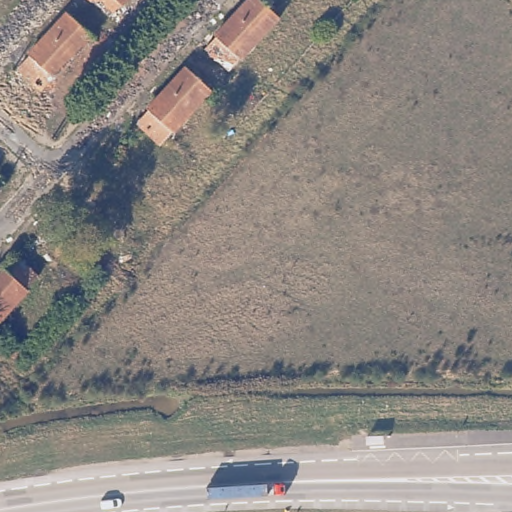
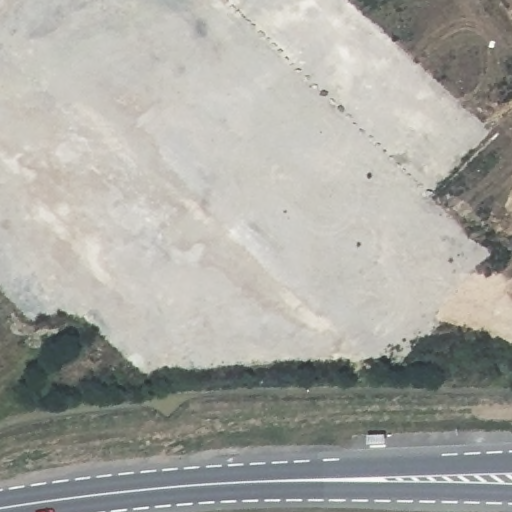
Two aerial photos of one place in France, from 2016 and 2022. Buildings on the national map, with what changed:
demolished [(126,3),(124,1),(112,13),(99,0),(129,0),(126,3)]
demolished [(286,16),(247,58),(243,55),(231,68),(209,46),(222,33),(219,30),(247,0),(270,0),(286,16)]
demolished [(99,33),(58,76),(56,74),(45,87),(22,66),(35,51),(32,48),(71,6),(99,33)]
demolished [(147,118),(158,107),(155,104),(195,62),(223,89),(184,131),(180,128),(169,140),(147,118)]
demolished [(37,275),(24,289),(28,293),(0,323),(0,265),(2,268),(13,256),(37,275)]

